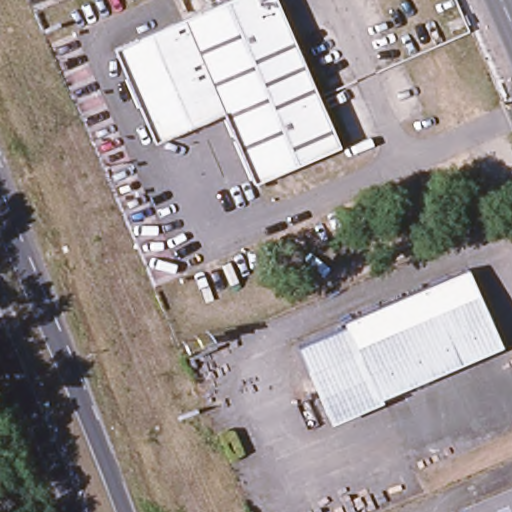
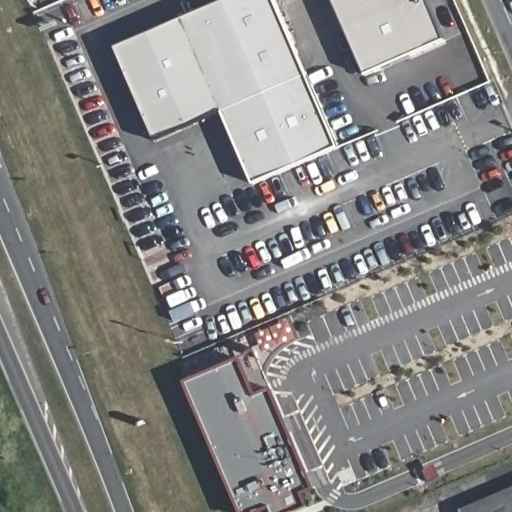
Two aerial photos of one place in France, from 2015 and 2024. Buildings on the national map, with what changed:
unchanged [(255,187),(222,116),(154,146),(115,52),(233,0),(271,0),(339,148),(255,187)]
new [(452,38),(372,74),(339,0),(435,0),(452,38)]
demolished [(350,328),(347,322),(463,270),(498,349),(381,401),(350,328)]
new [(274,387),(318,485),(306,491),(313,503),(294,512),(247,512),(189,381),(242,357),(258,350),(274,387)]
unchanged [(512,512),(474,512),(512,495),(512,512)]

